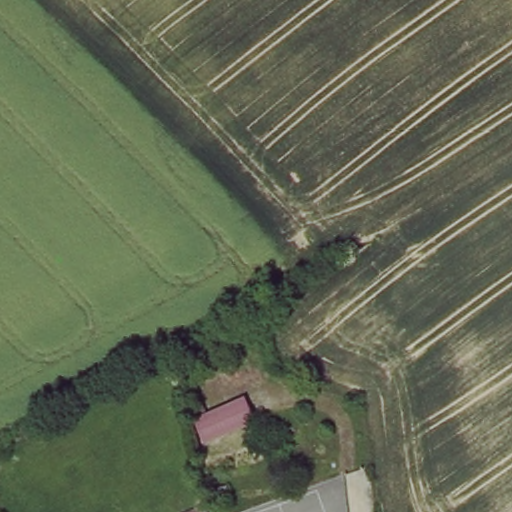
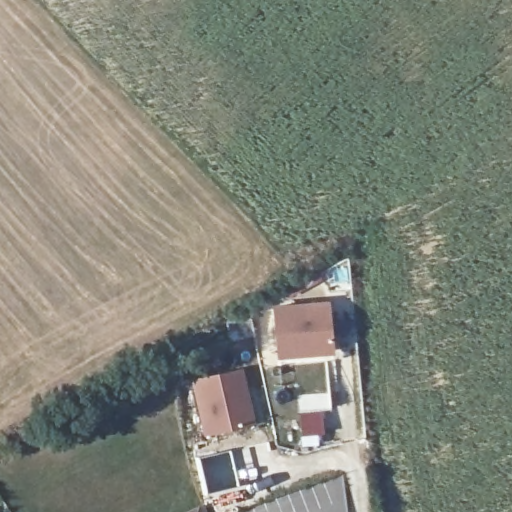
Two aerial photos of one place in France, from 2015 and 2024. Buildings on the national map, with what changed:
new [(334,293),(338,337),(283,342),(280,297),(334,293)]
new [(244,362),(254,415),(210,422),(200,370),(244,362)]
demolished [(201,420),(247,402),(255,425),(210,446),(201,420)]
unchanged [(208,512),(196,512),(206,507),(208,512)]

